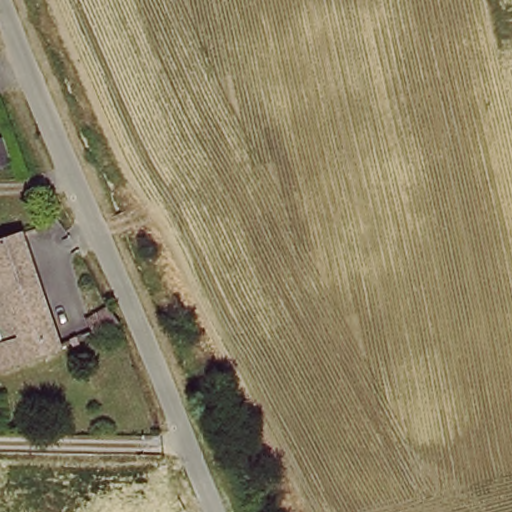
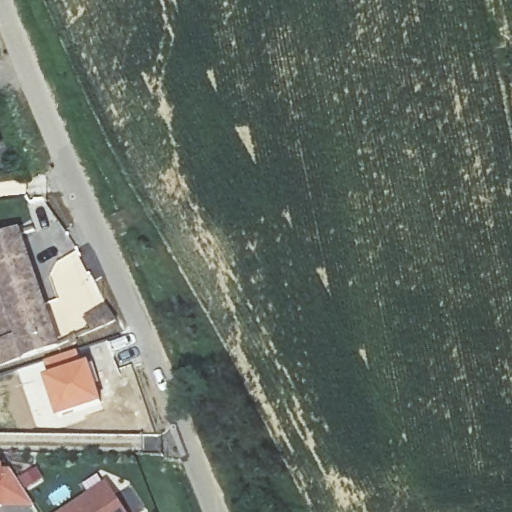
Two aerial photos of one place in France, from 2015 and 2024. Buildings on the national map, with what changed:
unchanged [(0,301),(0,232),(18,224),(62,345),(22,361),(0,370),(0,345),(14,340),(0,301)]
unchanged [(123,329),(98,339),(88,317),(111,306),(123,329)]
new [(42,361),(78,348),(84,364),(89,362),(103,405),(56,420),(43,378),(46,377),(46,376),(42,361)]
new [(0,467),(2,467),(2,471),(11,471),(34,508),(0,508),(0,467)]
new [(126,512),(63,512),(109,484),(126,512)]

